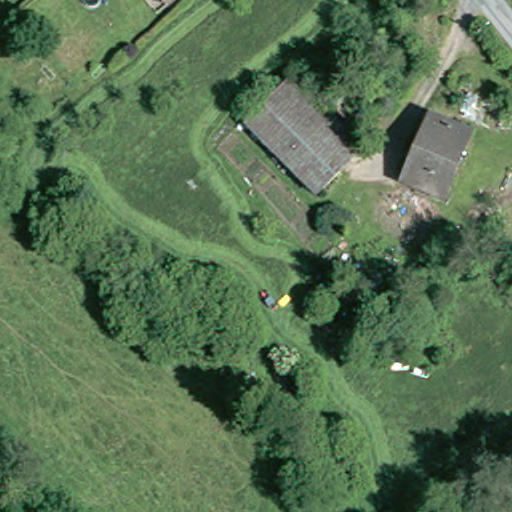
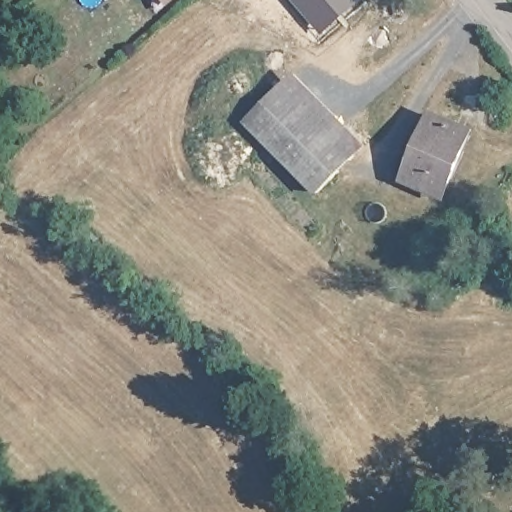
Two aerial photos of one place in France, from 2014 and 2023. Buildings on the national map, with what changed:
unchanged [(161,0),(175,0),(167,7),(161,0)]
new [(361,0),(322,34),(294,0),(361,0)]
unchanged [(296,80),(365,151),(355,162),(320,126),(285,91),(296,80)]
unchanged [(247,127),(285,91),(320,126),(282,162),(247,127)]
unchanged [(472,129),(448,194),(410,180),(408,179),(433,115),(472,129)]
unchanged [(355,162),(317,199),(282,162),(320,126),(355,162)]

